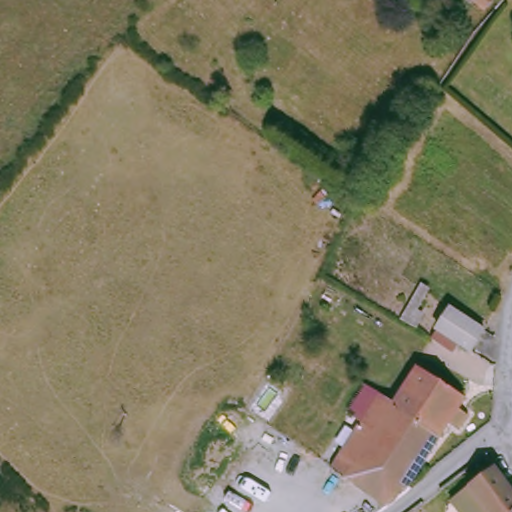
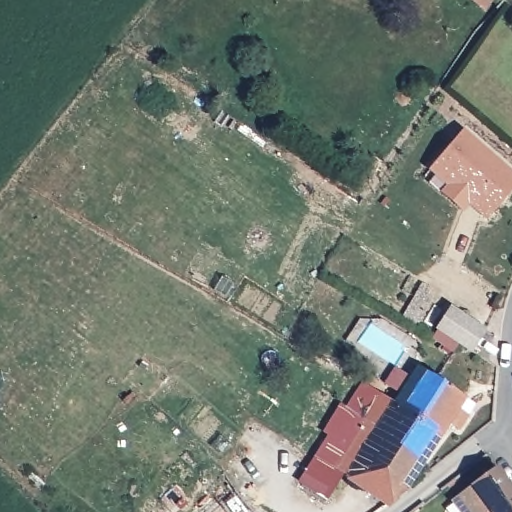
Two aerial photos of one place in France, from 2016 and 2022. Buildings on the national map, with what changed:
unchanged [(475,0),(490,0),(483,8),(475,0)]
new [(512,171),(512,188),(487,219),(468,203),(462,210),(440,193),(446,185),(428,170),(462,129),(512,171)]
unchanged [(367,177),(357,168),(368,153),(378,161),(367,177)]
unchanged [(447,304),(478,325),(465,347),(432,325),(447,304)]
unchanged [(332,462),(381,391),(394,399),(420,365),(464,395),(457,405),(466,411),(458,423),(450,418),(424,458),(400,486),(387,499),(343,469),(332,462)]
new [(339,405),(347,409),(363,383),(381,391),(332,462),(343,469),(327,495),(299,481),(313,453),(310,451),(339,405)]
unchanged [(443,501),(469,483),(492,466),(512,494),(512,512),(451,512),(443,501)]

